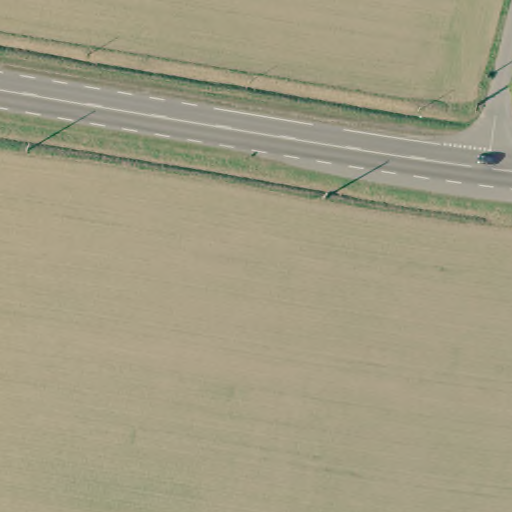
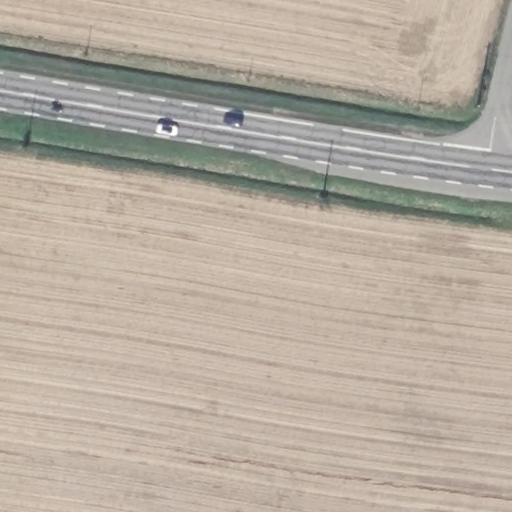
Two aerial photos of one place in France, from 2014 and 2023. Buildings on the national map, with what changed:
[]

